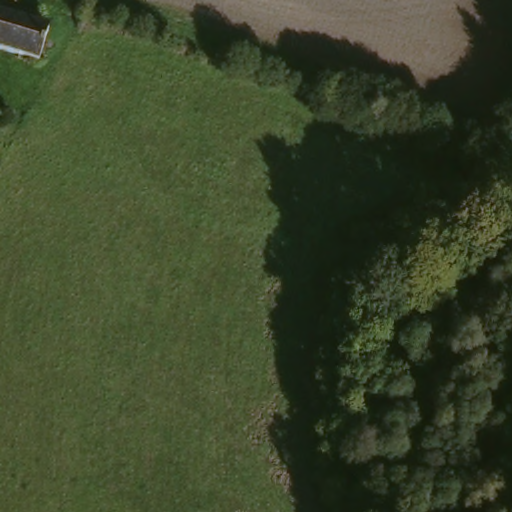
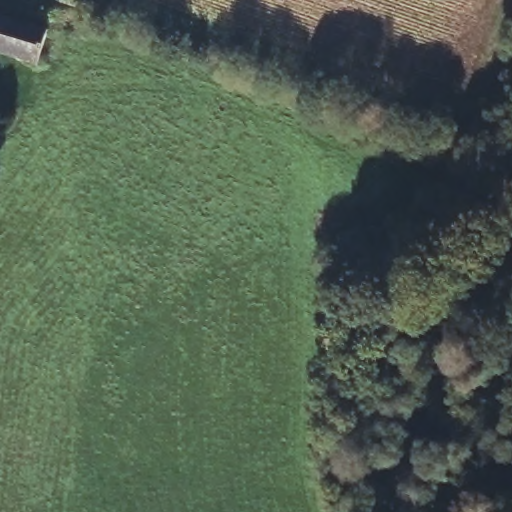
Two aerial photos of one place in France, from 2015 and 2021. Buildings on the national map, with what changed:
unchanged [(21,13),(9,45),(0,41),(0,5),(21,13)]
unchanged [(21,13),(58,28),(44,59),(9,45),(21,13)]

